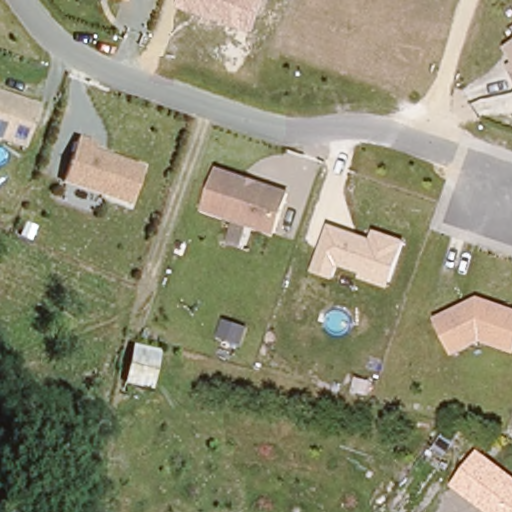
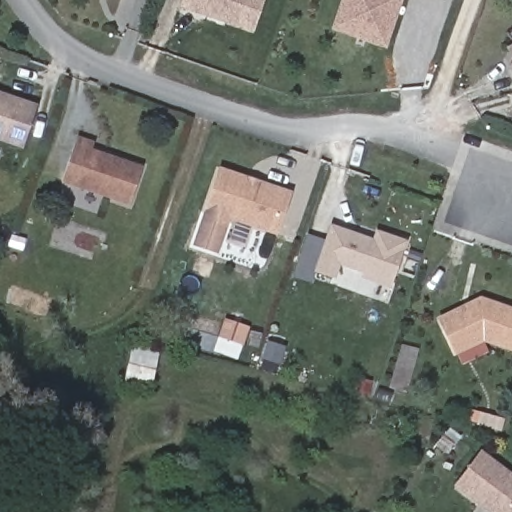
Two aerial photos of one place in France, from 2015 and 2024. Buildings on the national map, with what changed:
unchanged [(252,35),(178,10),(181,0),(264,0),(252,35)]
new [(342,0),(402,0),(386,48),(332,30),(342,0)]
unchanged [(511,45),(512,45),(512,47),(511,45)]
unchanged [(0,91),(39,105),(24,148),(0,141),(0,91)]
unchanged [(128,204),(63,184),(80,137),(97,142),(95,150),(141,165),(128,204)]
unchanged [(222,172),(291,196),(277,235),(230,219),(208,211),(222,172)]
new [(203,210),(208,211),(230,219),(219,254),(192,246),(203,210)]
unchanged [(391,288),(361,279),(363,273),(341,266),(337,280),(313,272),(330,224),(371,238),(374,230),(408,240),(391,288)]
unchanged [(484,296),(512,306),(512,345),(487,336),(459,350),(443,315),(484,296)]
unchanged [(160,353),(151,389),(126,383),(134,347),(160,353)]
unchanged [(488,512),(455,488),(483,450),(512,473),(512,512),(488,512)]

